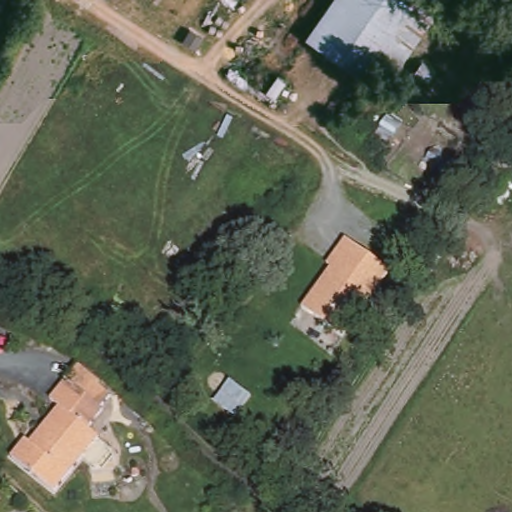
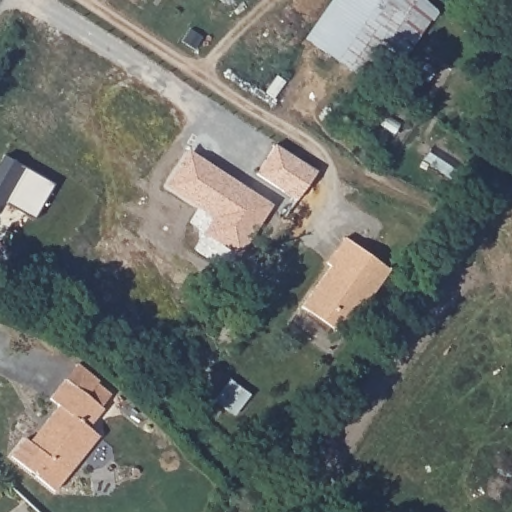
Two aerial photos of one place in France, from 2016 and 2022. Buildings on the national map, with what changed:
unchanged [(307,38),(333,0),(379,0),(340,60),(307,38)]
unchanged [(382,87),(340,60),(379,0),(421,0),(433,10),(382,87)]
new [(280,145),(318,170),(297,197),(260,172),(280,145)]
new [(190,152),(216,170),(214,174),(235,189),(238,184),(270,205),(238,252),(206,232),(216,216),(169,185),(190,152)]
new [(4,155),(54,182),(34,219),(5,203),(0,204),(0,161),(4,155)]
unchanged [(396,273),(345,341),(301,307),(330,270),(326,265),(347,236),(396,273)]
unchanged [(87,426),(99,436),(55,490),(14,457),(28,440),(32,443),(59,410),(49,402),(66,381),(77,367),(95,381),(84,395),(101,409),(87,426)]

